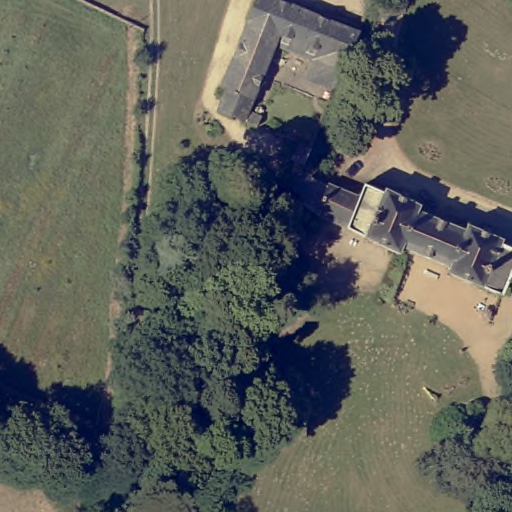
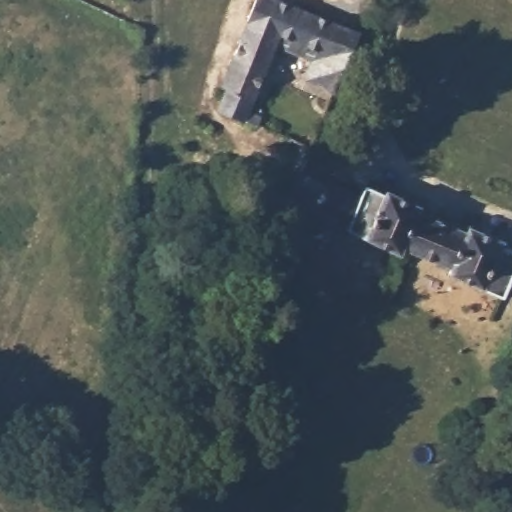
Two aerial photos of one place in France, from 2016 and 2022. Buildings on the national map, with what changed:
unchanged [(250,17),(257,0),(289,0),(362,30),(338,89),(310,78),(317,60),(281,44),(251,121),(223,110),(230,89),(226,87),(232,65),(252,19),(250,17)]
unchanged [(307,169),(295,164),(302,149),(315,154),(307,169)]
unchanged [(302,209),(306,199),(297,194),(303,174),(333,188),(335,184),(365,197),(370,187),(393,197),(393,194),(426,209),(424,213),(408,250),(406,256),(302,209)]
unchanged [(472,234),(457,270),(408,250),(424,213),(472,234)]
unchanged [(473,228),(507,242),(506,246),(512,248),(512,288),(508,298),(453,275),(457,270),(472,234),(473,228)]

